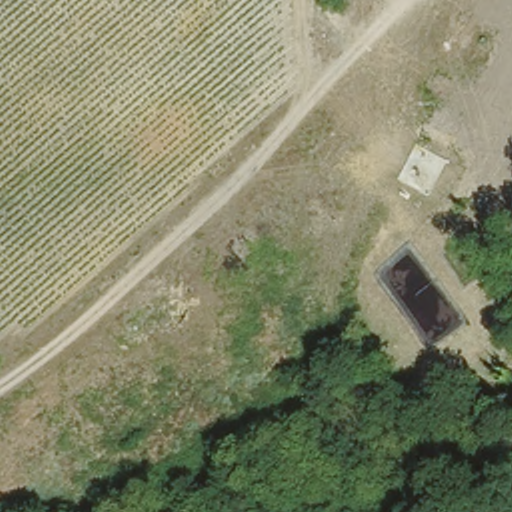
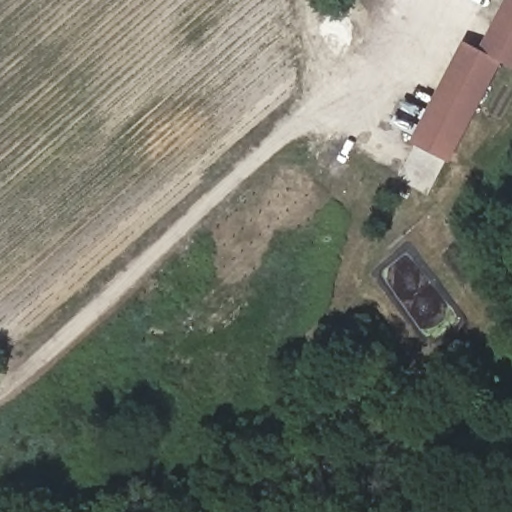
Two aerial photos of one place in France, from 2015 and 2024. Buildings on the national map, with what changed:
new [(464,41),(481,49),(507,0),(512,0),(512,66),(504,63),(452,163),(413,144),(464,41)]

